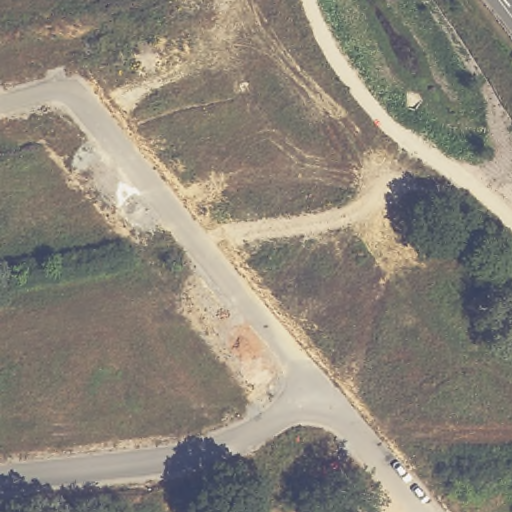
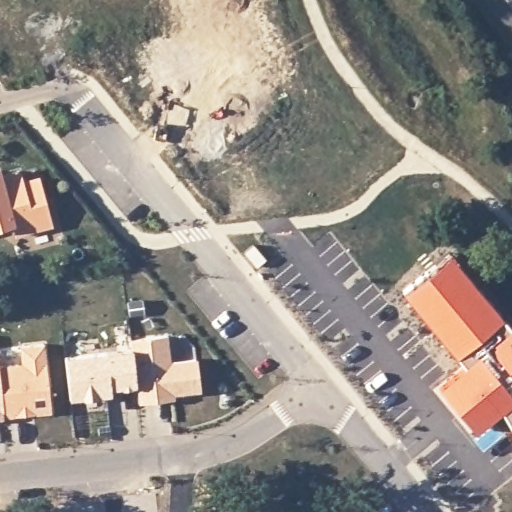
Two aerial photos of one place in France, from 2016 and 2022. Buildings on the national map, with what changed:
new [(19,167),(23,178),(40,175),(52,226),(15,236),(11,222),(0,225),(0,165),(2,172),(19,167)]
new [(448,250),(510,325),(512,323),(512,426),(501,407),(473,430),(437,384),(462,363),(401,290),(448,250)]
new [(166,337),(170,363),(195,360),(199,392),(154,397),(155,401),(137,403),(135,386),(131,350),(130,341),(166,337)]
new [(0,418),(0,390),(0,365),(21,363),(19,346),(42,343),(50,411),(35,413),(35,414),(13,417),(12,416),(3,417),(4,418),(0,418)]
new [(131,350),(135,386),(110,389),(110,395),(69,399),(65,358),(131,350)]

